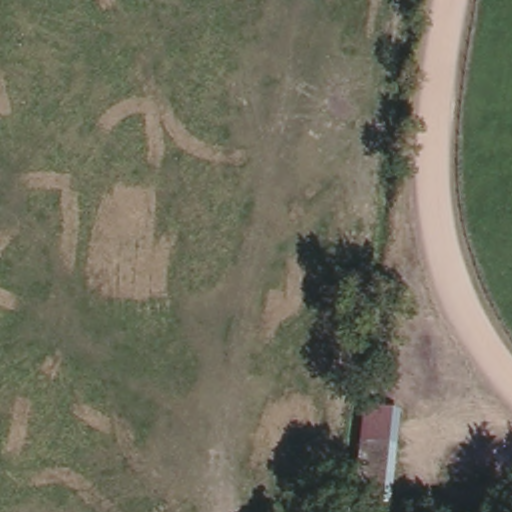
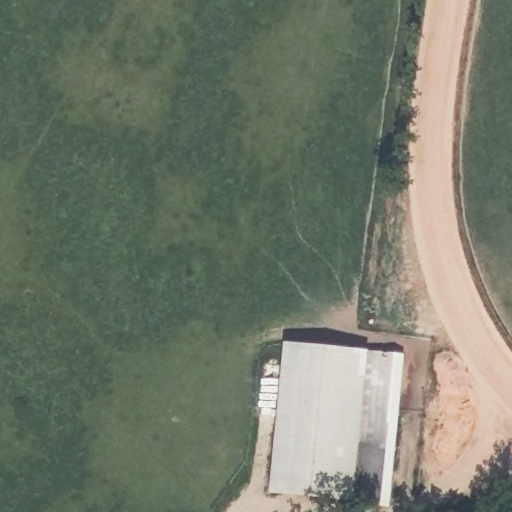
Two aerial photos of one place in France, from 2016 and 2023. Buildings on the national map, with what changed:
new [(391,502),(268,489),(282,338),(405,350),(391,502)]
demolished [(400,512),(386,512),(350,508),(365,399),(408,404),(400,512)]

